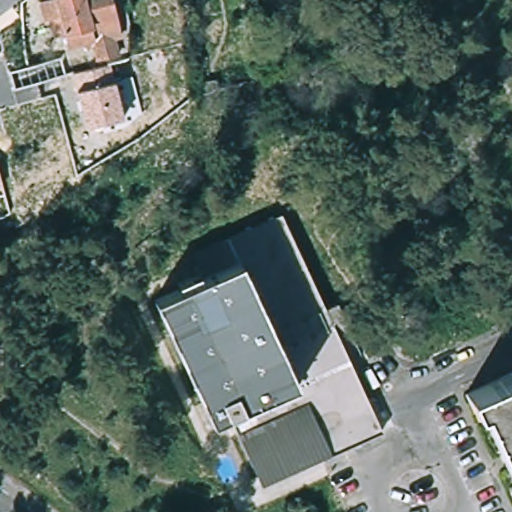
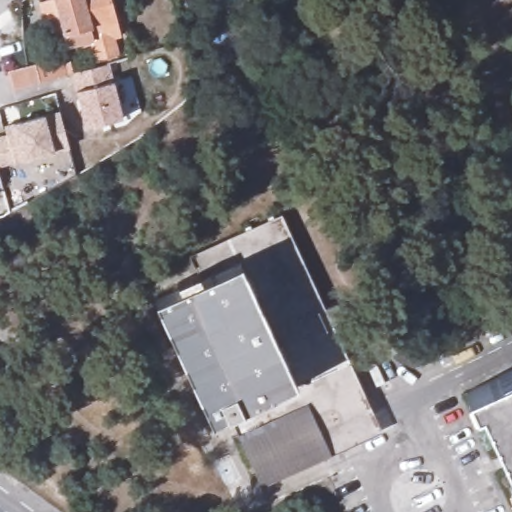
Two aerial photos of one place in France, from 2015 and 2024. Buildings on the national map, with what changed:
unchanged [(74,55),(70,40),(58,43),(54,26),(48,28),(43,7),(62,3),(61,0),(112,0),(123,44),(74,55)]
unchanged [(123,116),(85,128),(77,91),(73,73),(109,64),(113,83),(123,116)]
unchanged [(193,83),(216,80),(218,88),(195,93),(193,87),(193,83)]
new [(4,125),(13,124),(45,115),(60,111),(70,147),(55,151),(22,160),(0,167),(0,136),(5,135),(4,125)]
unchanged [(0,188),(0,180),(2,188),(0,188)]
unchanged [(356,373),(383,430),(324,458),(265,485),(233,418),(291,389),(223,244),(284,214),(356,373)]
unchanged [(191,259),(223,244),(291,389),(233,418),(215,427),(158,307),(203,284),(191,259)]
unchanged [(512,372),(512,478),(472,391),(512,372)]

